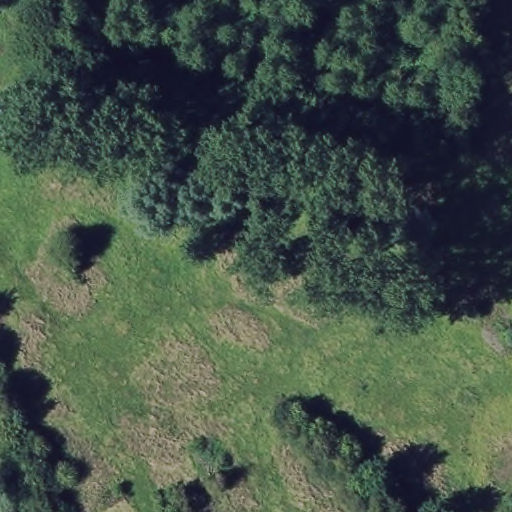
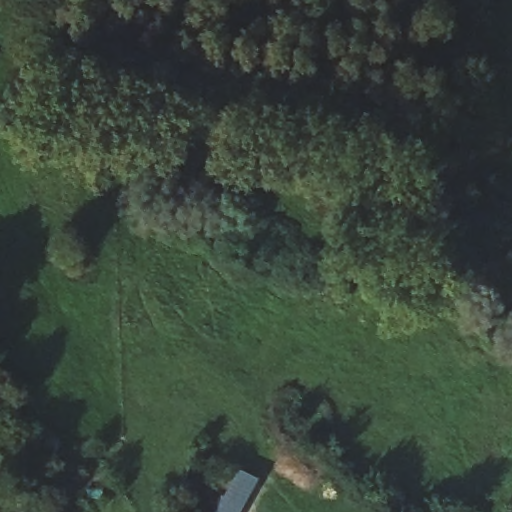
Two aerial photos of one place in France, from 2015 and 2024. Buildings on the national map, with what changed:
new [(256,483),(240,512),(214,512),(237,472),(256,483)]

